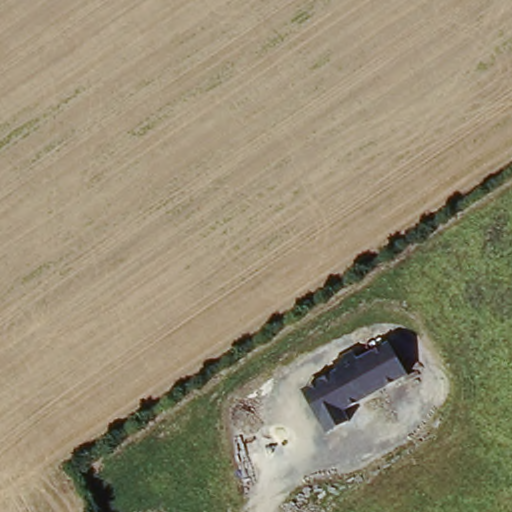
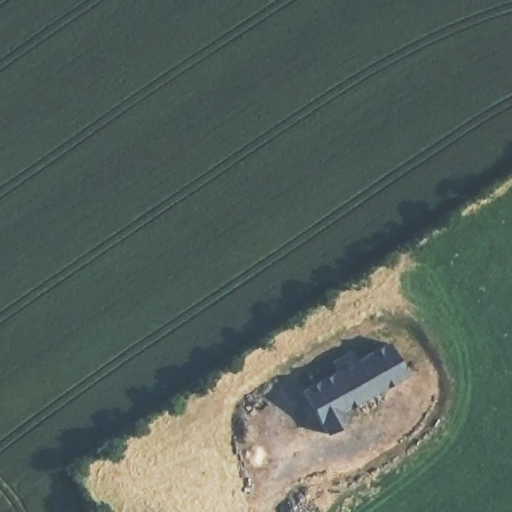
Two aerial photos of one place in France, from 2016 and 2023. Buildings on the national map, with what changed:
unchanged [(391,345),(410,374),(321,430),(303,397),(391,345)]

